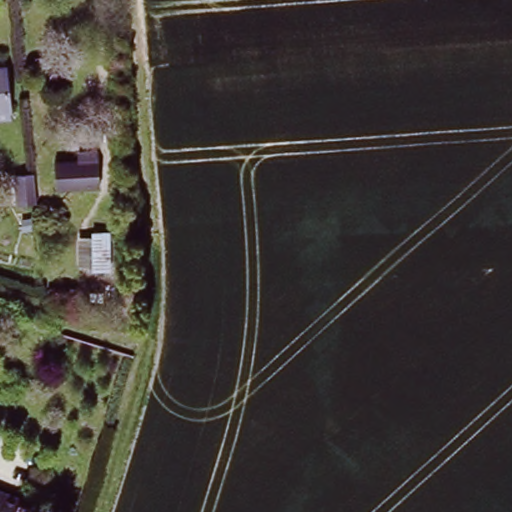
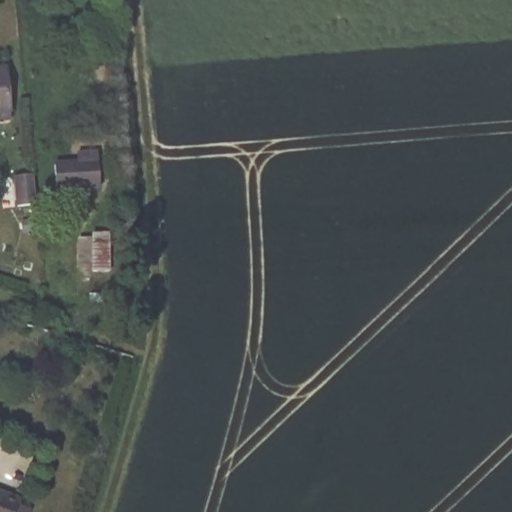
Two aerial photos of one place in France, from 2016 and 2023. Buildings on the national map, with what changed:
unchanged [(5,63),(10,114),(0,115),(0,63),(5,63)]
unchanged [(59,189),(58,164),(80,162),(80,152),(98,152),(98,161),(100,187),(59,189)]
unchanged [(27,174),(30,201),(2,204),(0,176),(27,174)]
unchanged [(112,232),(112,270),(95,270),(95,263),(87,263),(87,239),(95,239),(95,232),(112,232)]
unchanged [(20,503),(16,512),(0,512),(0,496),(20,503)]

